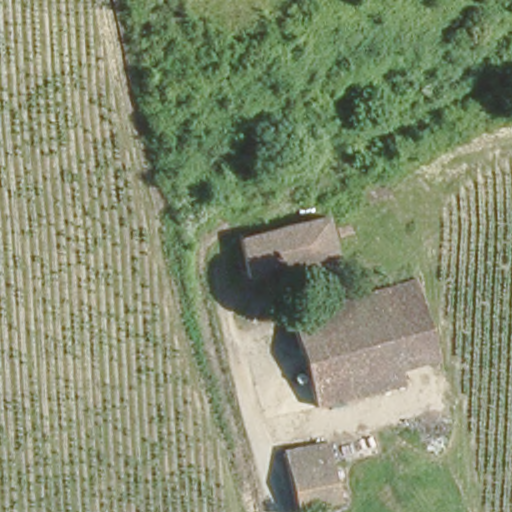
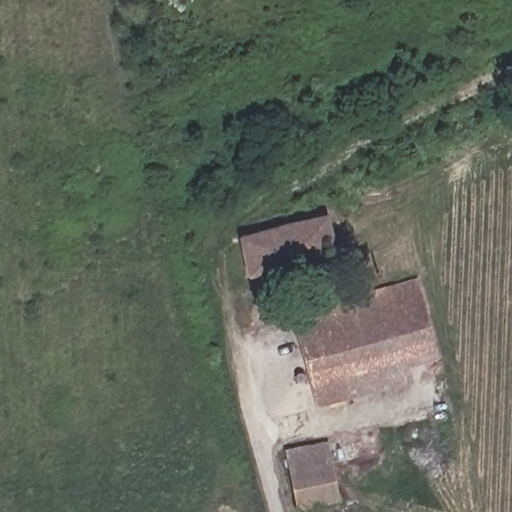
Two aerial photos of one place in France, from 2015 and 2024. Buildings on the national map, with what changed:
unchanged [(253,224),(326,211),(336,253),(237,275),(237,274),(235,254),(241,252),(237,242),(242,230),(253,224)]
unchanged [(413,272),(432,345),(401,352),(382,279),(413,272)]
unchanged [(401,352),(405,368),(313,389),(287,302),(382,279),(401,352)]
unchanged [(479,424),(491,422),(492,432),(480,433),(479,424)]
unchanged [(285,448),(326,442),(335,499),(292,508),(285,448)]

